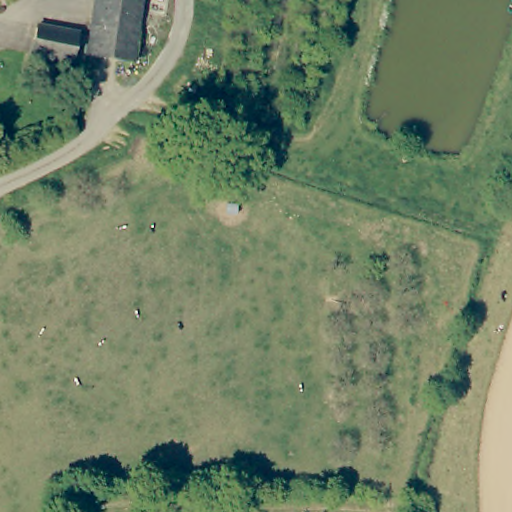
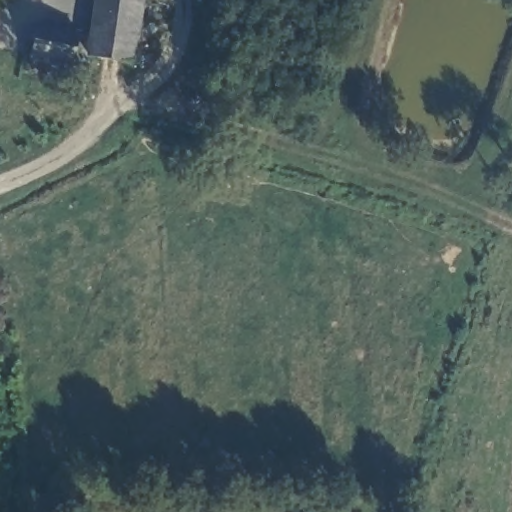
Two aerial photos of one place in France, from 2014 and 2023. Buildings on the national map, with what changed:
unchanged [(139,17),(132,62),(87,57),(96,0),(156,0),(153,19),(139,17)]
unchanged [(77,33),(71,67),(29,58),(37,24),(77,33)]

